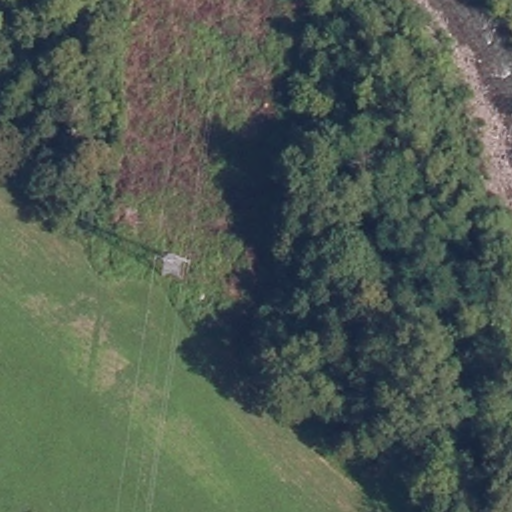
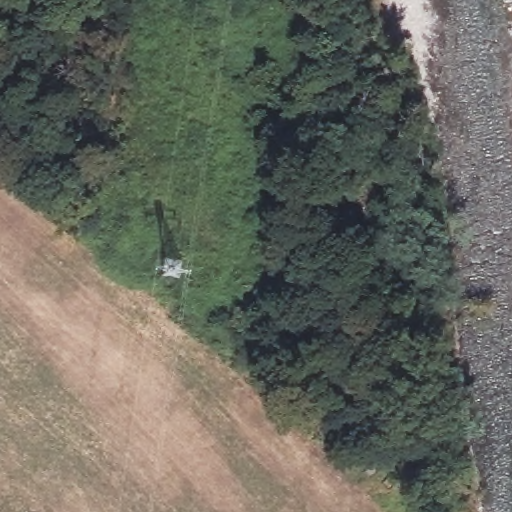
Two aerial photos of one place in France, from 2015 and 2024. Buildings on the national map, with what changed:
[]

